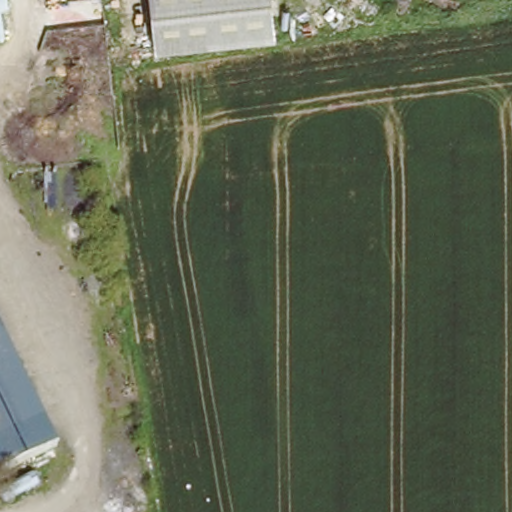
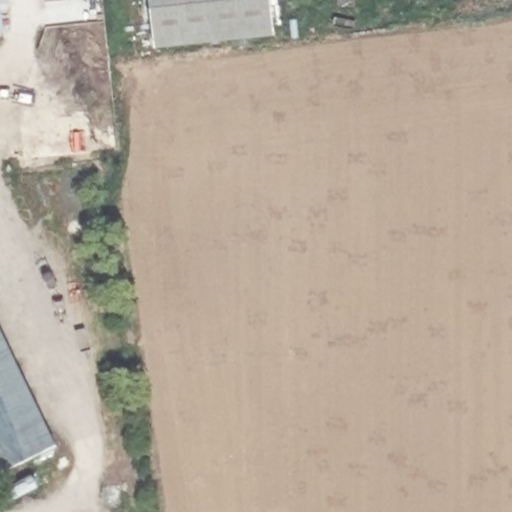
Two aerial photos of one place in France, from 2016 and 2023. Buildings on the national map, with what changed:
unchanged [(156,50),(151,0),(270,0),(275,38),(156,50)]
unchanged [(42,419),(0,439),(0,328),(42,419)]
unchanged [(42,419),(56,445),(0,475),(0,439),(42,419)]

